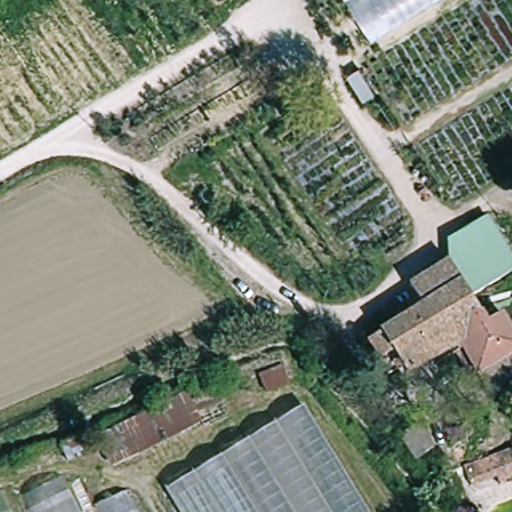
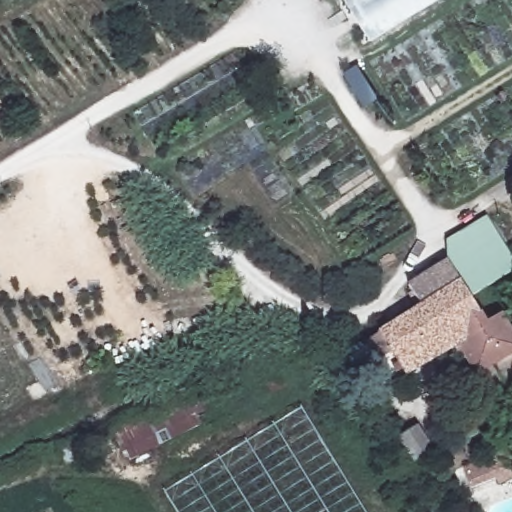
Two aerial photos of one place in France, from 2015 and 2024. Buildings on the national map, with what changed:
unchanged [(370,38),(347,0),(438,0),(372,40),(370,38)]
unchanged [(447,263),(460,233),(490,215),(512,254),(512,269),(468,296),(447,263)]
unchanged [(478,376),(459,345),(407,375),(402,367),(389,375),(368,343),(380,334),(424,306),(410,286),(447,263),(468,296),(485,322),(500,313),(512,334),(512,386),(495,397),(480,374),(478,376)]
unchanged [(288,388),(198,426),(143,455),(128,423),(186,392),(191,402),(281,367),(288,388)]
unchanged [(317,395),(387,512),(177,512),(163,488),(317,395)]
unchanged [(398,437),(415,425),(431,448),(413,460),(398,437)]
unchanged [(56,445),(74,437),(83,455),(64,463),(56,445)]
unchanged [(495,477),(470,486),(462,468),(512,449),(512,478),(498,483),(495,477)]
demolished [(6,490),(16,506),(62,480),(82,512),(0,512),(0,493),(6,490)]
demolished [(131,493),(140,512),(85,512),(131,493)]
new [(122,494),(131,512),(96,512),(94,508),(122,494)]

